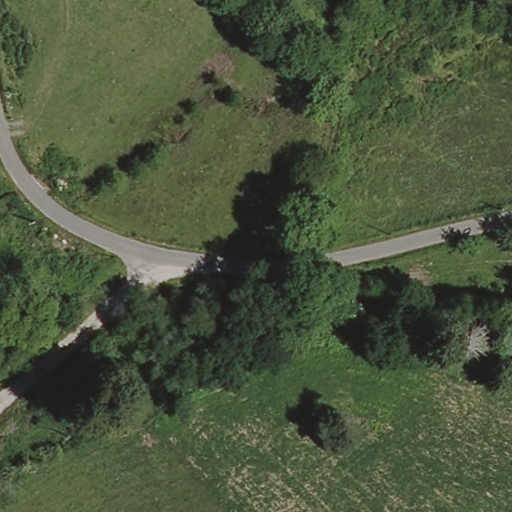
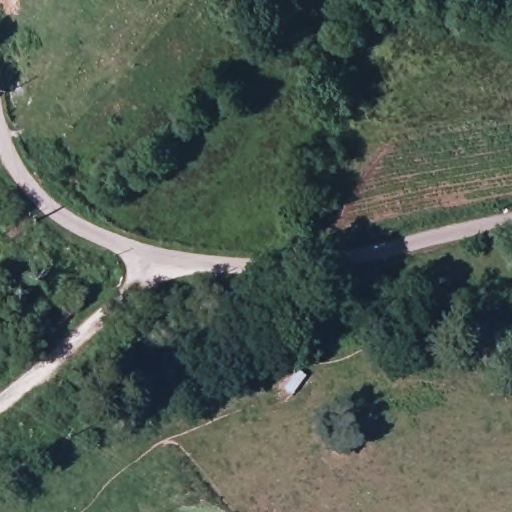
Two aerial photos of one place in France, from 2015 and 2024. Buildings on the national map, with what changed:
[]

